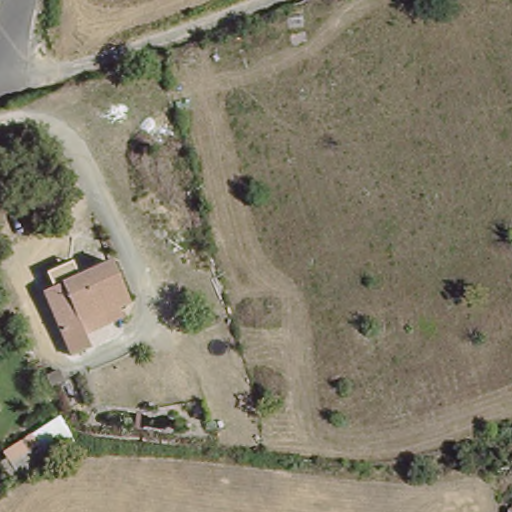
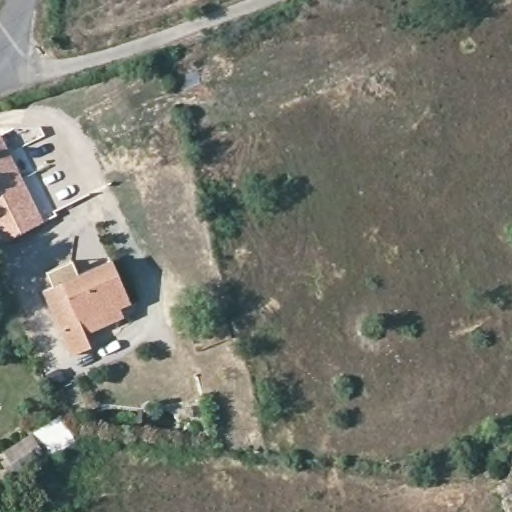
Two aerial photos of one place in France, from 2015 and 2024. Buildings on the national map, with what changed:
new [(43,221),(0,243),(0,135),(2,134),(43,221)]
unchanged [(70,363),(58,336),(40,296),(110,265),(128,305),(113,312),(118,320),(104,326),(100,318),(77,328),(89,354),(70,363)]
unchanged [(0,461),(0,458),(33,440),(47,461),(11,481),(0,461)]

